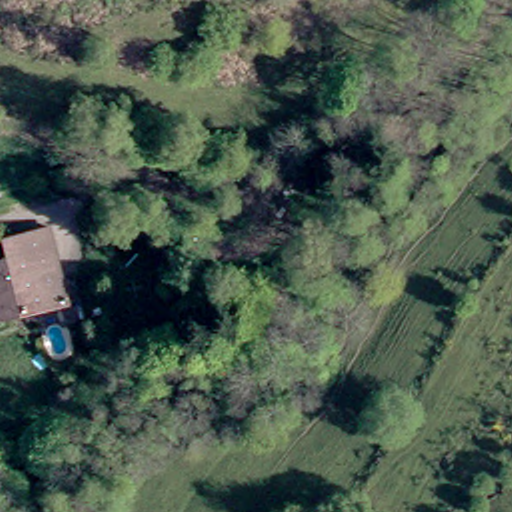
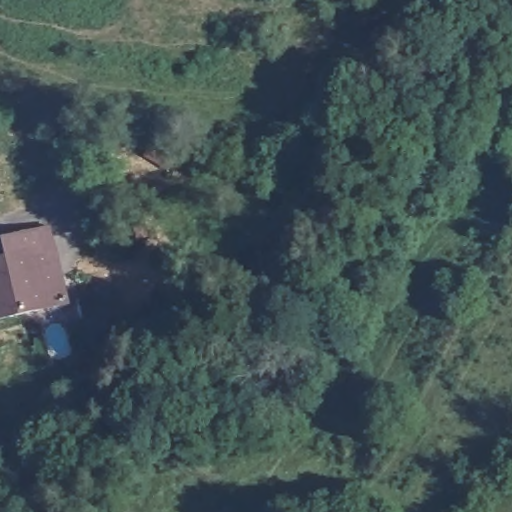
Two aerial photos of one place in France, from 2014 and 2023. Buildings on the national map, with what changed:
unchanged [(51,226),(64,302),(0,313),(0,258),(13,255),(11,233),(51,226)]

